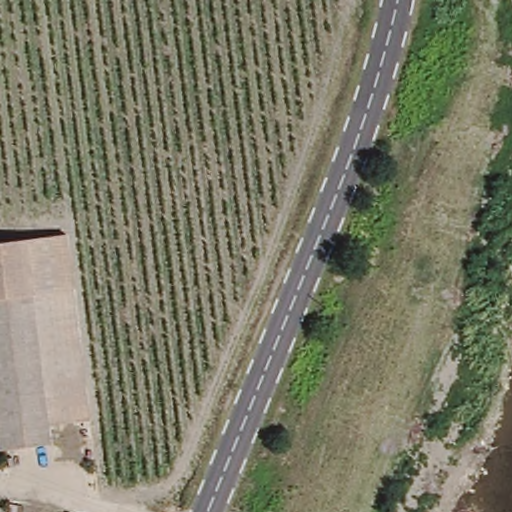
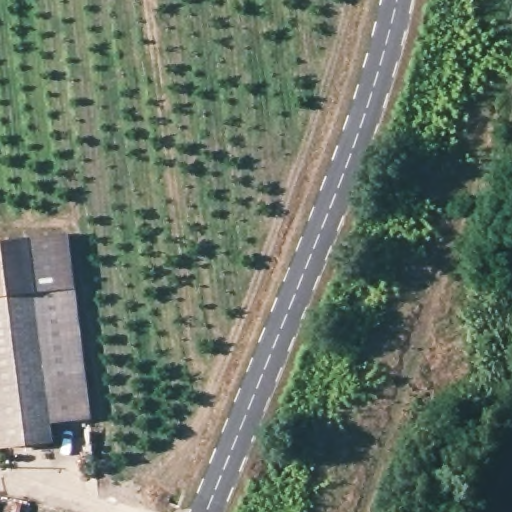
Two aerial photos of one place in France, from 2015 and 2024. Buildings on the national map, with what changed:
unchanged [(65,232),(86,393),(44,398),(24,237),(65,232)]
unchanged [(0,446),(0,240),(24,237),(44,398),(49,440),(0,446)]
unchanged [(23,512),(7,512),(7,501),(23,502),(23,512)]

